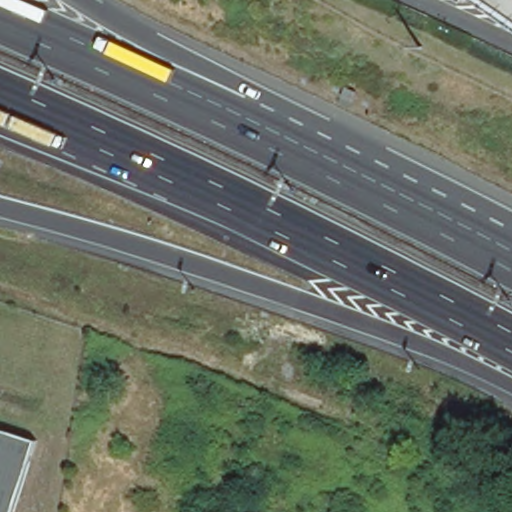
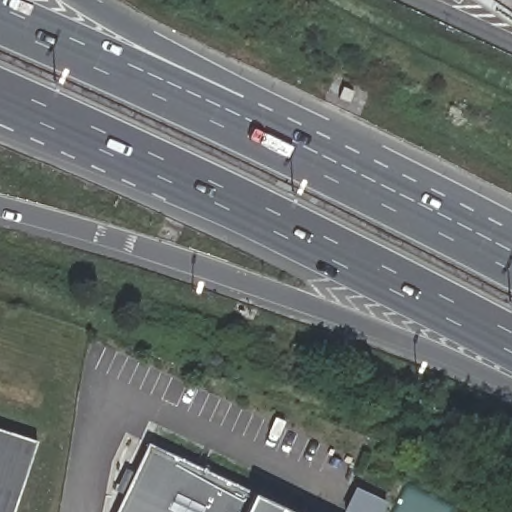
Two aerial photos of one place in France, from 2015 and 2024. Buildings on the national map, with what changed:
unchanged [(464,0),(474,0),(471,5),(464,0)]
unchanged [(512,0),(512,23),(477,0),(512,0)]
unchanged [(29,443),(7,512),(0,512),(0,433),(29,443)]
new [(135,473),(150,445),(256,494),(295,512),(117,512),(125,495),(116,490),(126,469),(135,473)]
new [(344,512),(355,487),(387,502),(383,512),(345,512),(344,512)]

